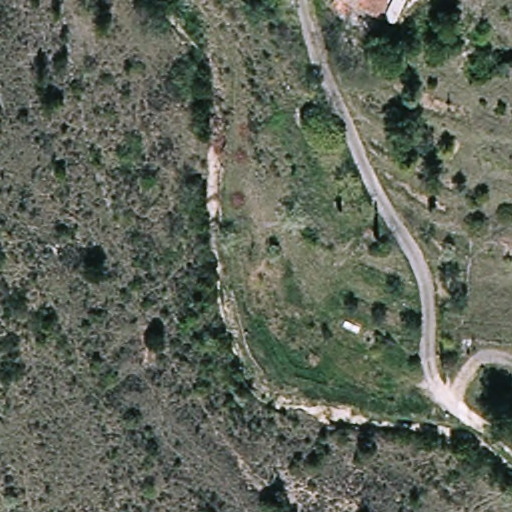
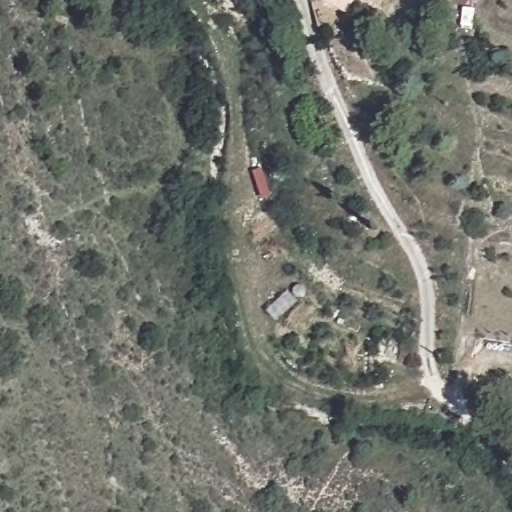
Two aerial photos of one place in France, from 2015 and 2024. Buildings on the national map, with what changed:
unchanged [(348,0),(348,1),(345,0),(348,0)]
unchanged [(376,0),(388,0),(386,4),(376,0)]

